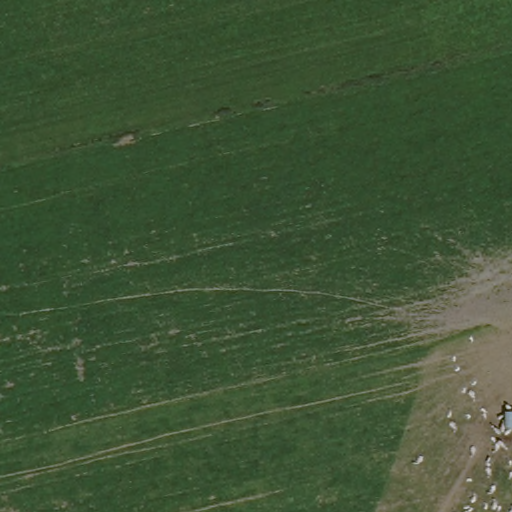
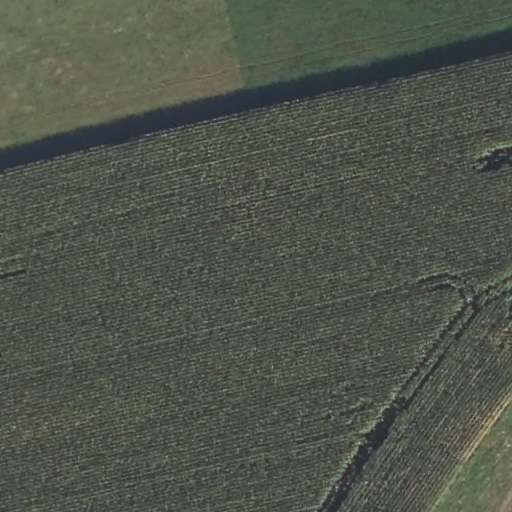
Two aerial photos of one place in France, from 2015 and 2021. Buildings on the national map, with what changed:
[]

